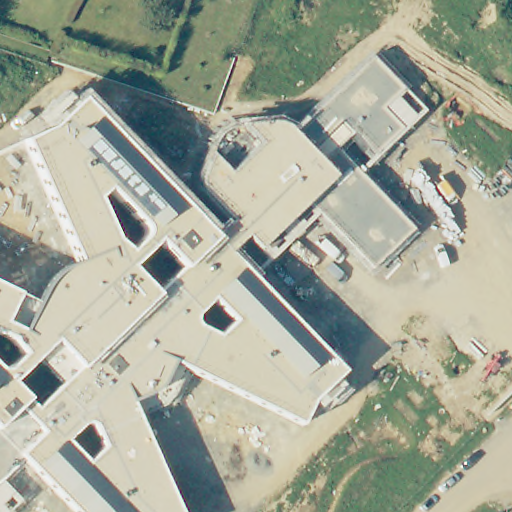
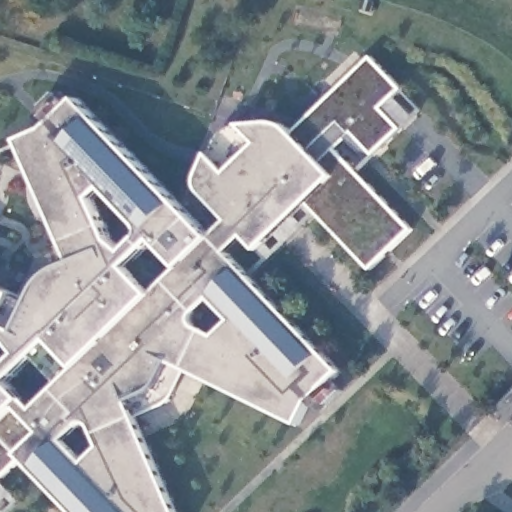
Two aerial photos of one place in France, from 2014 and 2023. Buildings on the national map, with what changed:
unchanged [(36,302),(44,285),(50,278),(59,270),(79,262),(25,140),(51,127),(39,115),(63,92),(72,101),(82,93),(211,227),(222,215),(194,188),(196,176),(202,160),(208,148),(213,138),(220,131),(227,126),(236,123),(241,123),(273,120),(283,121),(293,128),(372,58),(424,111),(360,173),(412,228),(371,268),(317,213),(254,277),(343,370),(311,403),(301,425),(184,367),(181,377),(174,389),(167,398),(162,403),(149,410),(137,415),(180,512),(75,512),(25,460),(2,480),(22,500),(9,512),(0,512),(0,369),(3,372),(24,355),(9,337),(0,333),(0,285),(36,302)]

